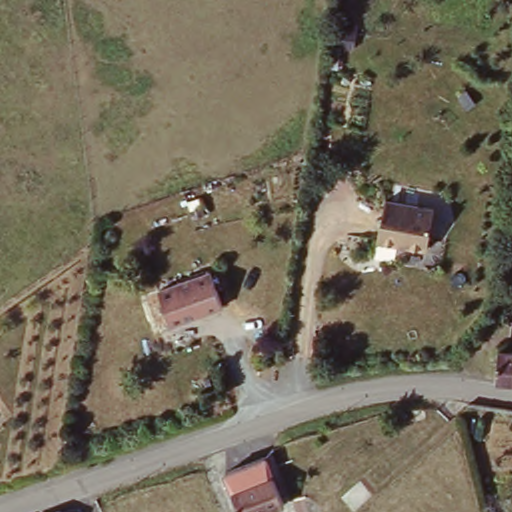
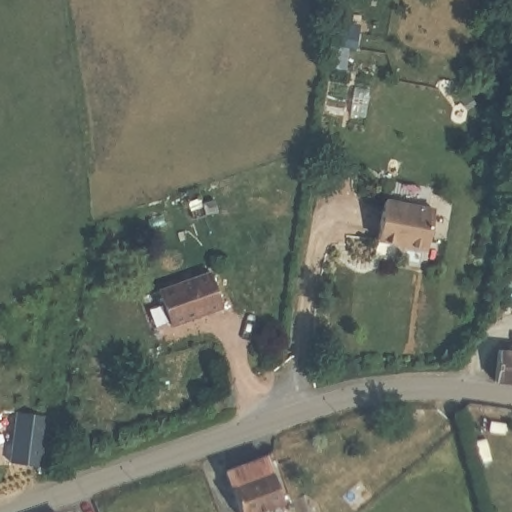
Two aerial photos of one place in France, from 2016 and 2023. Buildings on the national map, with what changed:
unchanged [(429,209),(421,251),(375,242),(384,200),(429,209)]
unchanged [(207,275),(218,312),(165,327),(155,291),(207,275)]
unchanged [(498,387),(501,357),(512,358),(512,389),(498,387)]
new [(20,413),(49,417),(42,467),(12,463),(20,413)]
unchanged [(269,466),(284,512),(239,512),(226,480),(269,466)]
demolished [(338,506),(343,512),(331,512),(338,506)]

